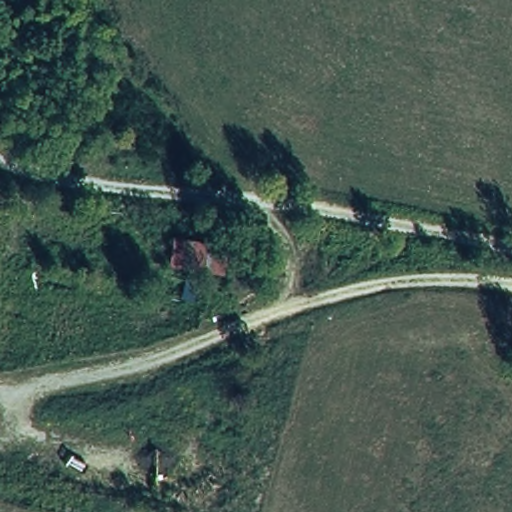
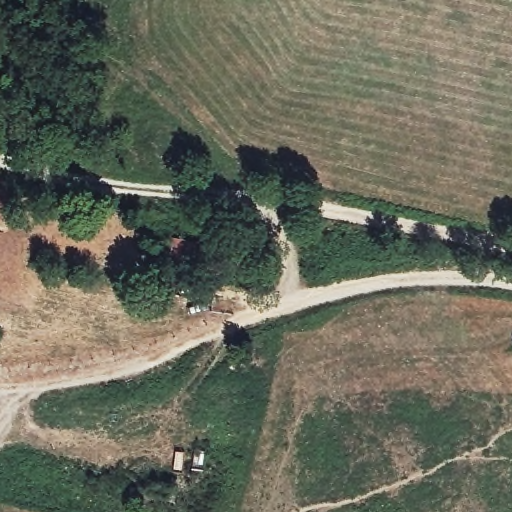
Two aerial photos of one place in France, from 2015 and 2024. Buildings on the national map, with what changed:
unchanged [(227,242),(225,276),(166,268),(171,233),(227,242)]

